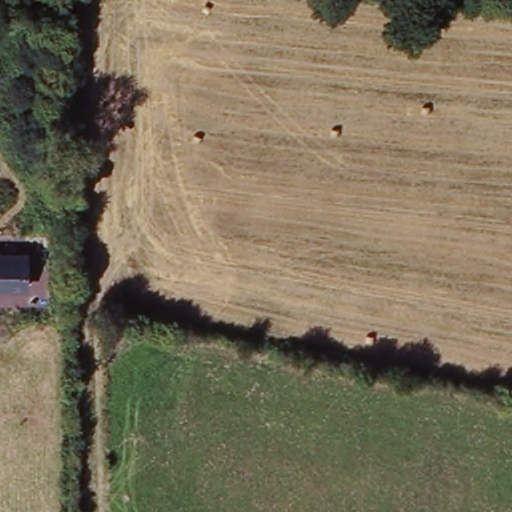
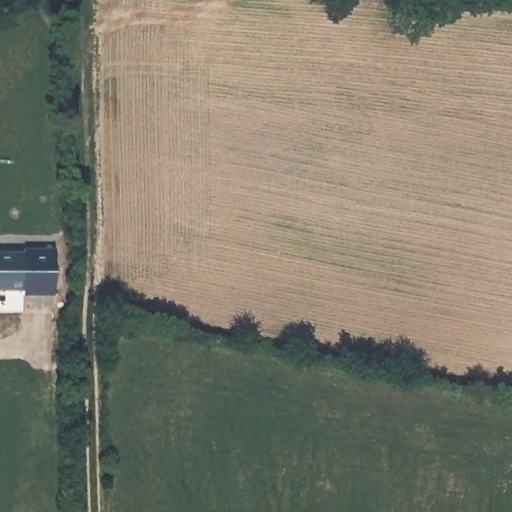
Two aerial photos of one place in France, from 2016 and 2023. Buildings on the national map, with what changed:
unchanged [(32,291),(0,290),(0,255),(32,255),(32,291)]

